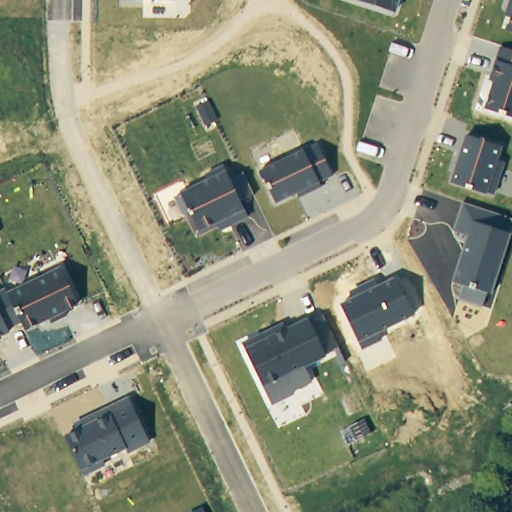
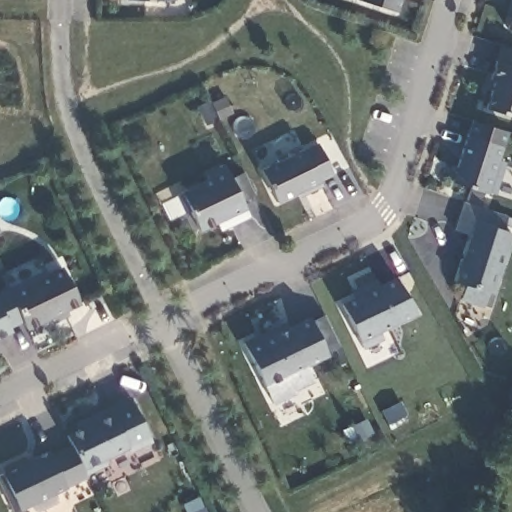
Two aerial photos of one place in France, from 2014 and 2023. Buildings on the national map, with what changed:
unchanged [(359,0),(399,0),(394,12),(359,0)]
unchanged [(504,30),(509,18),(503,15),(508,0),(512,0),(512,32),(504,30)]
unchanged [(512,50),(512,118),(483,109),(493,81),(489,80),(495,60),(499,46),(512,50)]
unchanged [(502,145),(497,159),(505,162),(494,197),(485,194),(451,183),(464,134),(502,145)]
unchanged [(303,148),(317,143),(330,174),(319,180),(321,187),(298,198),(295,194),(274,203),(260,170),(303,148)]
unchanged [(225,169),(228,177),(242,172),(253,195),(240,202),(244,210),(248,218),(219,232),(216,224),(197,231),(179,192),(207,179),(204,172),(222,164),(225,169)]
unchanged [(506,217),(503,230),(509,233),(491,295),(486,293),(482,307),(459,300),(463,286),(452,283),(467,235),(453,230),(463,203),(506,217)]
unchanged [(7,292),(61,265),(77,304),(25,329),(21,320),(8,327),(10,333),(0,338),(0,288),(4,286),(7,292)]
unchanged [(352,297),(349,290),(374,278),(378,285),(395,278),(414,313),(378,330),(383,340),(362,349),(359,342),(339,303),(352,297)]
unchanged [(309,321),(322,316),(338,346),(324,352),(326,356),(304,366),(310,381),(293,391),(294,394),(273,404),(264,385),(246,347),(243,342),(284,323),(286,327),(308,317),(309,321)]
unchanged [(126,396),(149,443),(128,453),(125,449),(103,459),(105,465),(82,476),(79,469),(65,434),(76,430),(73,423),(126,396)]
new [(52,494),(55,501),(36,512),(30,503),(18,509),(14,511),(0,483),(0,473),(3,472),(0,469),(23,459),(24,462),(46,451),(49,456),(69,445),(79,469),(82,476),(63,488),(52,494)]

